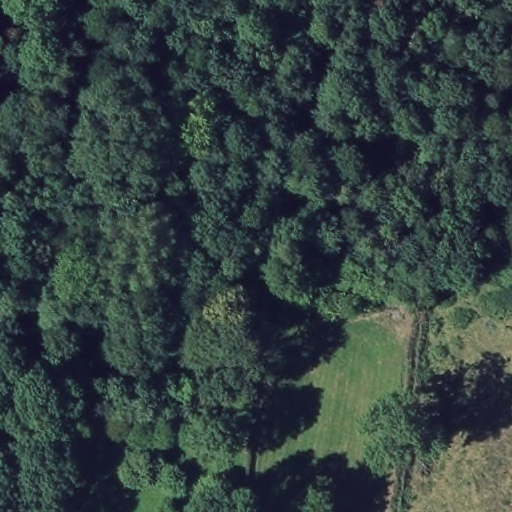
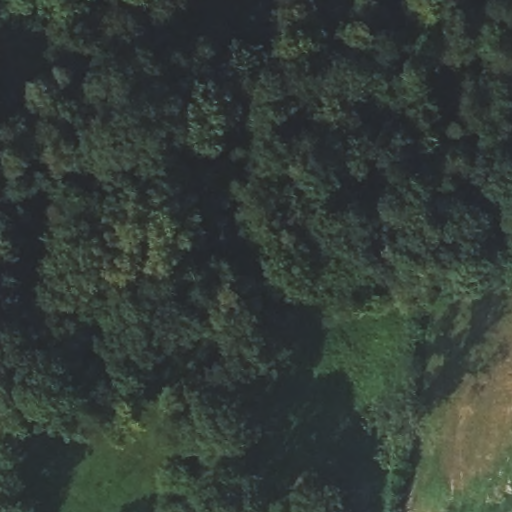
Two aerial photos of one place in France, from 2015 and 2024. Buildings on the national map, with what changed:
[]

